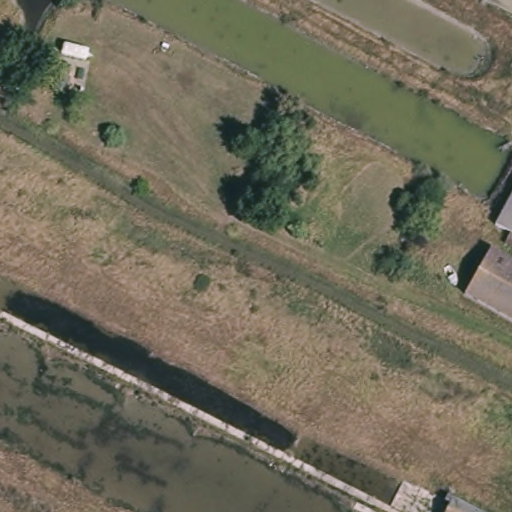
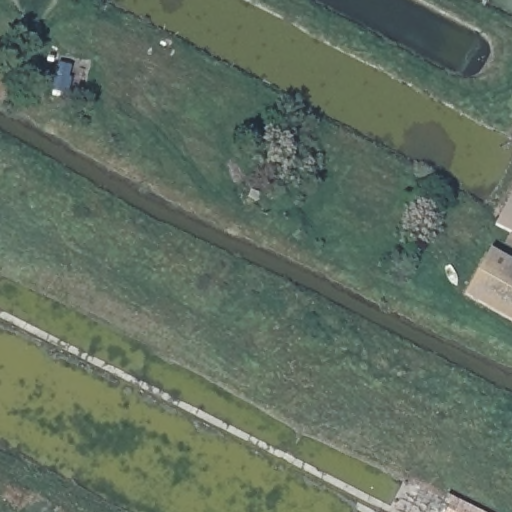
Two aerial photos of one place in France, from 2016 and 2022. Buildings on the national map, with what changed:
unchanged [(494,226),(512,193),(512,236),(494,226)]
unchanged [(487,250),(512,263),(512,322),(463,296),(487,250)]
unchanged [(454,498),(481,512),(446,512),(454,498)]

